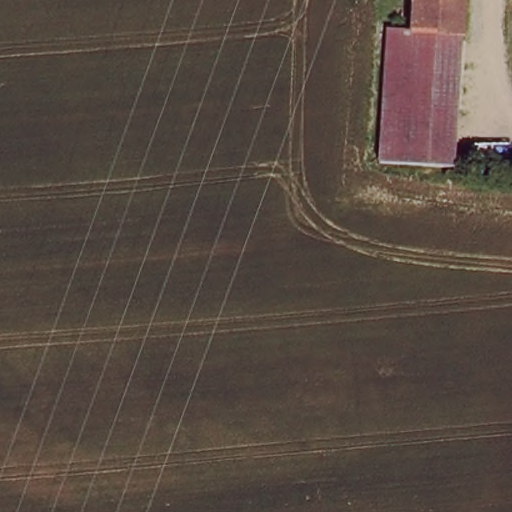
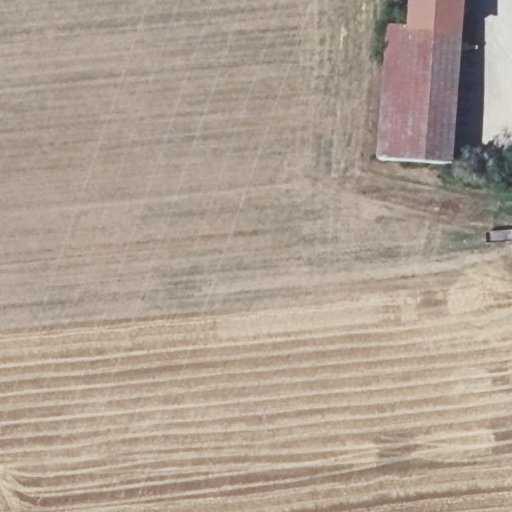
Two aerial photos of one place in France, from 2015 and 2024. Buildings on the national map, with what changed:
unchanged [(466,0),(463,36),(415,32),(418,0),(466,0)]
unchanged [(463,36),(455,171),(381,166),(391,31),(415,32),(463,36)]

